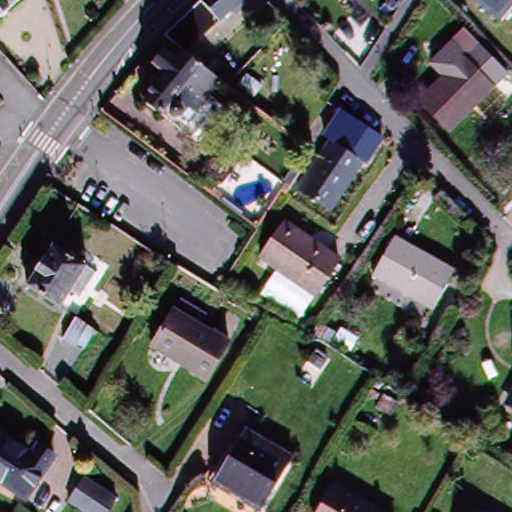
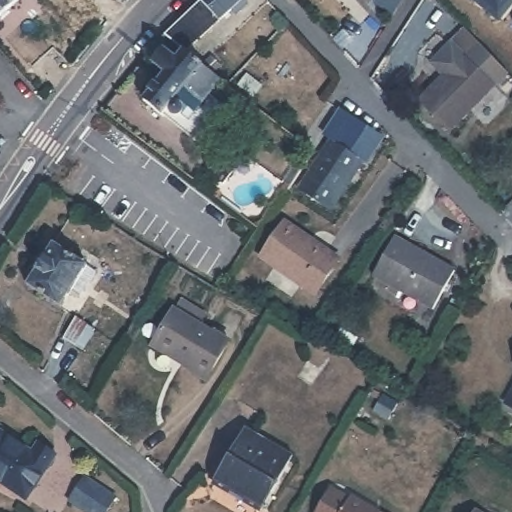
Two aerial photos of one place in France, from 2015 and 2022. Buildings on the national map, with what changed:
unchanged [(21,0),(0,18),(0,0),(21,0)]
unchanged [(161,36),(199,0),(240,0),(181,54),(179,52),(161,36)]
unchanged [(471,0),(511,0),(495,20),(471,0)]
unchanged [(173,96),(168,104),(156,118),(138,103),(160,75),(147,65),(160,50),(172,60),(179,52),(181,54),(218,81),(200,103),(193,112),(173,96)]
unchanged [(449,129),(419,96),(464,53),(494,84),(470,108),(460,118),(449,129)]
unchanged [(330,146),(324,142),(340,118),(382,145),(365,170),(362,169),(329,217),(297,195),(330,146)]
unchanged [(291,194),(286,201),(278,197),(283,188),(282,187),(293,169),(303,176),(291,194)]
unchanged [(311,294),(256,257),(279,222),(304,239),(321,250),(334,259),(311,294)]
unchanged [(76,288),(67,282),(56,299),(23,277),(49,235),(91,263),(76,288)]
unchanged [(429,314),(368,280),(388,244),(449,279),(429,314)]
unchanged [(213,333),(227,343),(203,381),(189,372),(190,371),(153,346),(174,313),(176,314),(181,306),(205,321),(200,329),(211,336),(213,333)]
unchanged [(83,351),(65,339),(77,320),(95,332),(83,351)]
unchanged [(374,413),(383,399),(398,409),(390,423),(374,413)]
unchanged [(282,477),(263,509),(216,481),(236,449),(247,430),(293,458),(282,477)]
unchanged [(0,477),(0,431),(31,453),(38,443),(53,453),(25,494),(0,477)]
unchanged [(105,512),(79,512),(63,502),(79,478),(112,501),(105,512)]
unchanged [(332,489),(348,499),(350,497),(377,512),(318,512),(332,489)]

